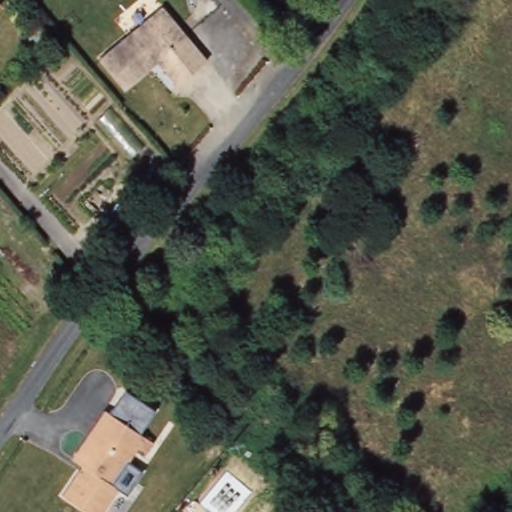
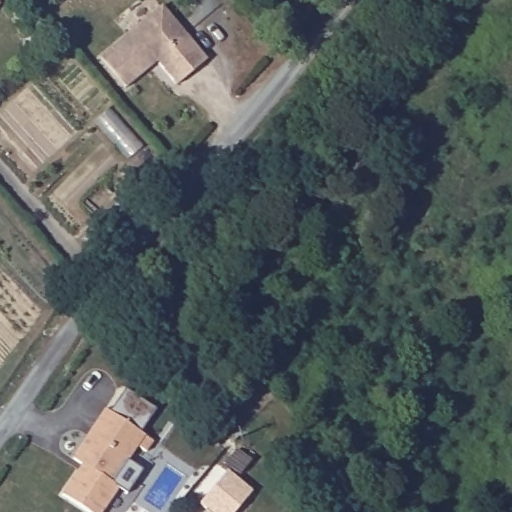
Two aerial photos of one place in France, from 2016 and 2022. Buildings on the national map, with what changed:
unchanged [(0,0),(4,0),(0,4),(0,0)]
unchanged [(99,66),(148,25),(160,15),(205,69),(194,79),(175,94),(155,70),(124,96),(99,66)]
unchanged [(116,411),(112,408),(126,389),(154,409),(142,429),(116,411)]
unchanged [(112,512),(98,512),(75,495),(95,467),(83,458),(116,411),(164,443),(157,453),(147,447),(121,483),(128,488),(112,512)]
new [(252,490),(234,512),(209,512),(200,505),(227,470),(252,490)]

